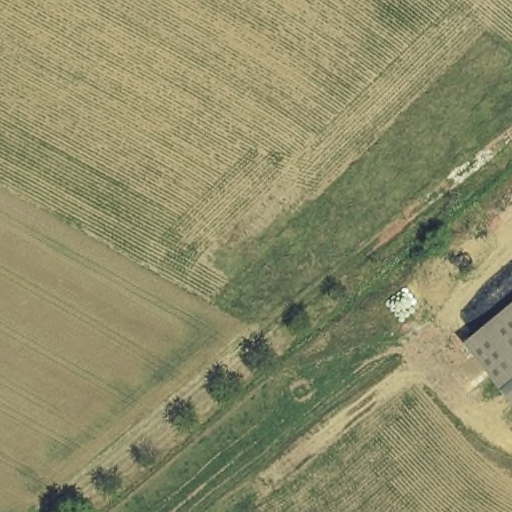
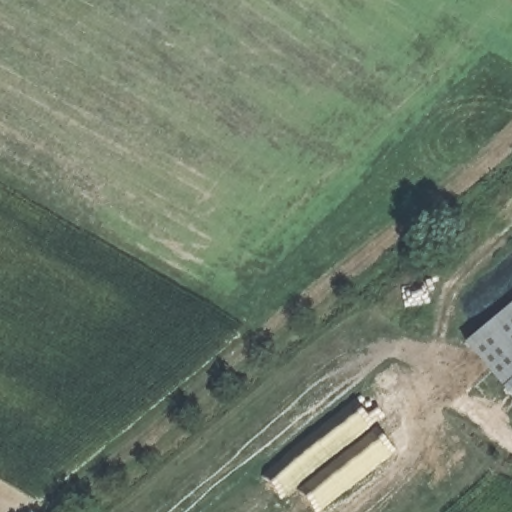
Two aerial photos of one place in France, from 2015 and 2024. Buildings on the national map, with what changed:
unchanged [(512,303),(512,392),(469,340),(512,303)]

